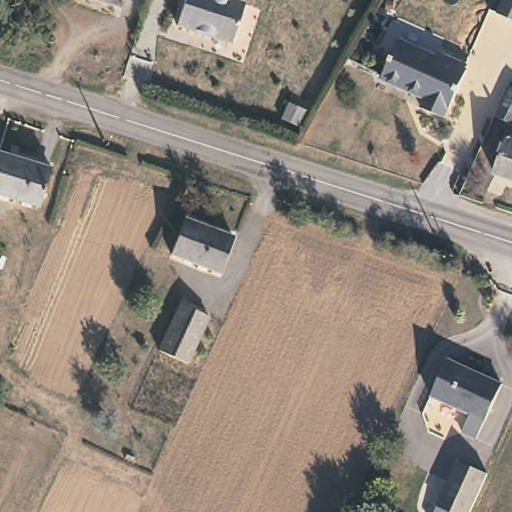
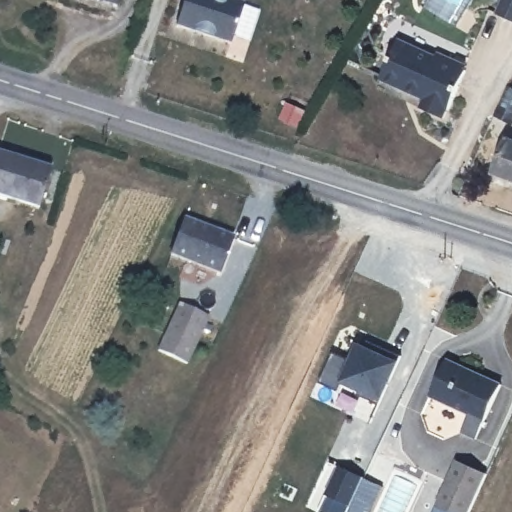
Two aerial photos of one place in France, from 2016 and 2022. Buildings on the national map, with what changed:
unchanged [(94,0),(115,0),(112,6),(94,0)]
unchanged [(188,0),(248,0),(236,42),(181,26),(188,0)]
unchanged [(506,0),(512,0),(512,24),(497,19),(506,0)]
unchanged [(463,62),(467,63),(450,102),(443,99),(438,110),(416,100),(422,89),(376,67),(393,30),(428,46),(431,43),(464,57),(463,62)]
unchanged [(512,96),(512,126),(501,121),(512,96)]
unchanged [(512,179),(491,171),(503,136),(512,139),(512,179)]
unchanged [(52,169),(42,207),(0,193),(0,156),(2,152),(52,169)]
unchanged [(230,232),(218,272),(168,257),(179,218),(230,232)]
unchanged [(209,311),(190,359),(160,350),(177,302),(209,311)]
new [(382,401),(380,406),(357,396),(359,392),(342,383),(338,390),(320,381),(333,353),(351,362),(360,342),(400,362),(382,401)]
unchanged [(475,437),(461,429),(468,412),(430,394),(450,358),(500,383),(475,437)]
unchanged [(467,512),(457,512),(436,504),(455,458),(487,472),(467,512)]
new [(348,512),(309,512),(307,512),(330,463),(363,478),(348,512)]

